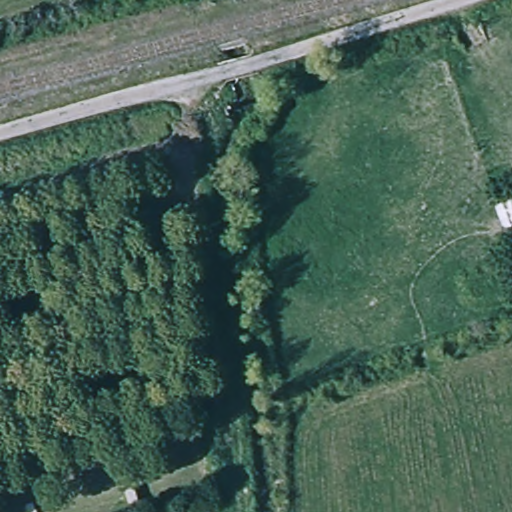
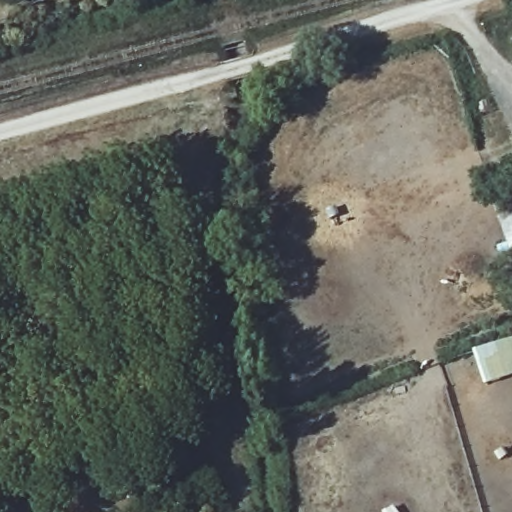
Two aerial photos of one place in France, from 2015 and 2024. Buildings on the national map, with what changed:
unchanged [(492,197),(512,190),(512,256),(492,197)]
new [(488,385),(477,352),(512,340),(512,377),(488,385)]

